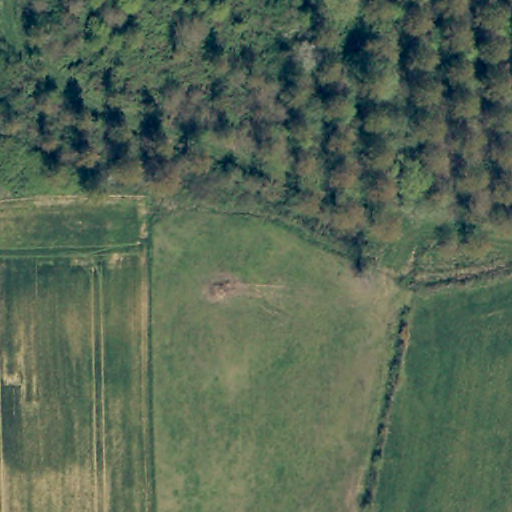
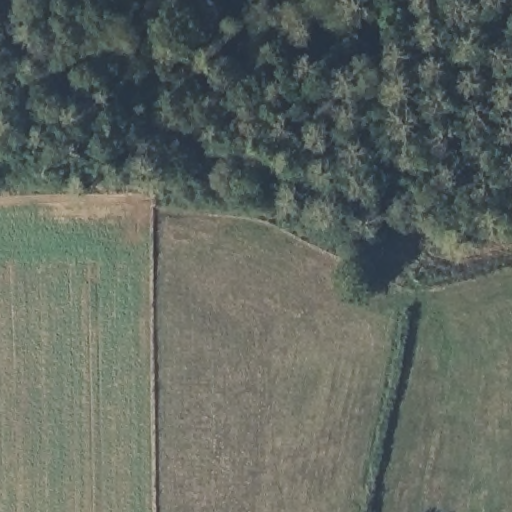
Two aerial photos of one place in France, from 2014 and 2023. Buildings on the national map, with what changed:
[]

